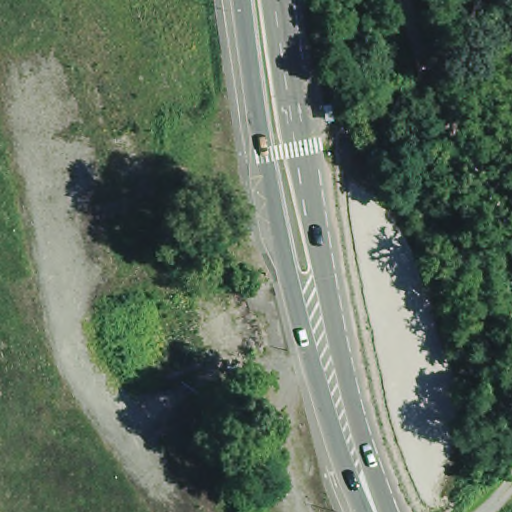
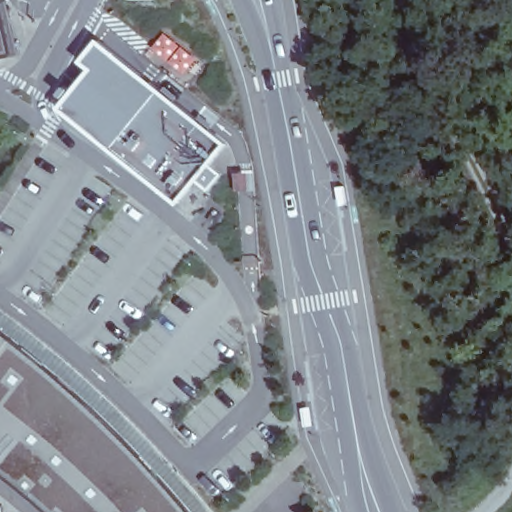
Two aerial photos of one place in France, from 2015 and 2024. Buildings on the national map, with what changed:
new [(31,59),(0,70),(0,0),(7,0),(21,7),(31,59)]
demolished [(60,36),(104,22),(135,119),(93,131),(60,36)]
new [(236,147),(216,171),(225,179),(213,193),(205,187),(188,207),(69,114),(103,74),(93,67),(110,44),(236,147)]
demolished [(160,200),(128,208),(106,147),(139,139),(160,200)]
demolished [(143,263),(123,270),(110,221),(129,215),(143,263)]
demolished [(254,342),(221,350),(216,323),(203,326),(196,293),(209,291),(243,285),(254,342)]
new [(101,406),(175,482),(199,512),(65,512),(24,474),(0,458),(0,323),(23,339),(101,406)]
demolished [(145,357),(161,355),(171,352),(173,365),(176,377),(167,378),(150,382),(148,370),(145,357)]

